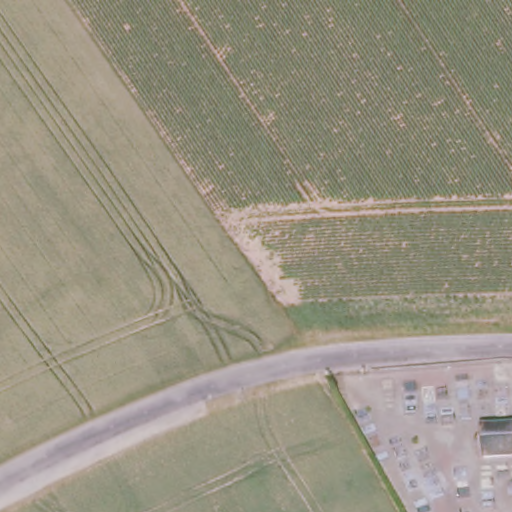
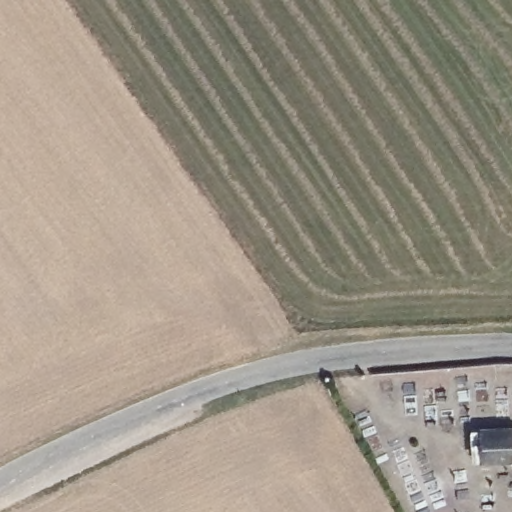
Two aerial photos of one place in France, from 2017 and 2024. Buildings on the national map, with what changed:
unchanged [(475,421),(512,423),(512,456),(476,456),(475,421)]

